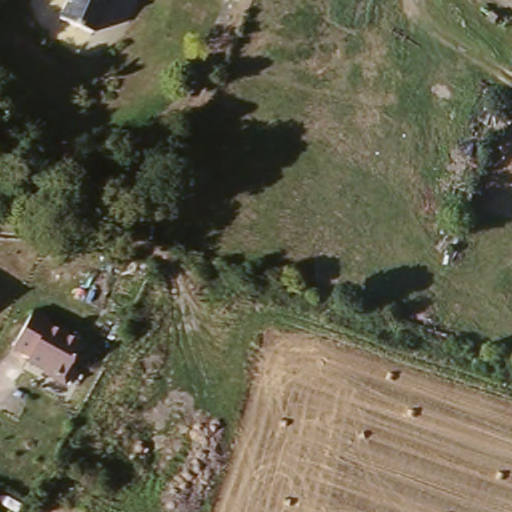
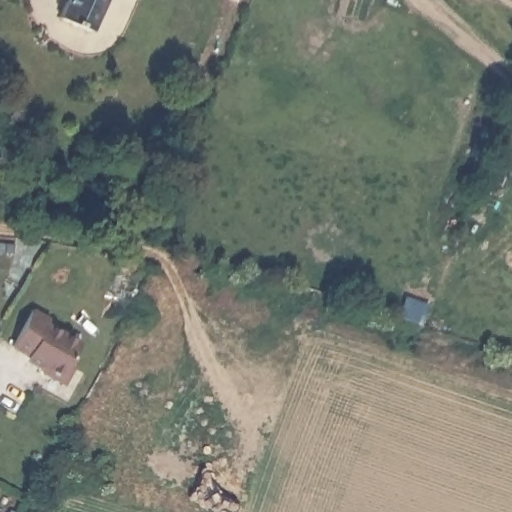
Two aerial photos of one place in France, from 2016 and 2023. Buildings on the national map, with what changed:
unchanged [(64,10),(68,0),(106,0),(96,23),(64,10)]
unchanged [(36,310),(51,318),(48,325),(82,343),(63,384),(26,365),(29,355),(14,347),(36,310)]

